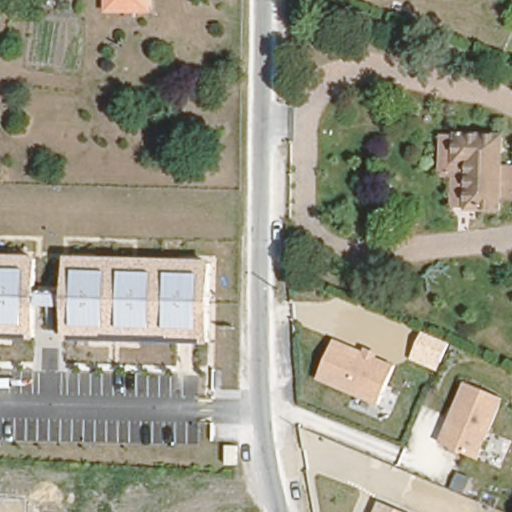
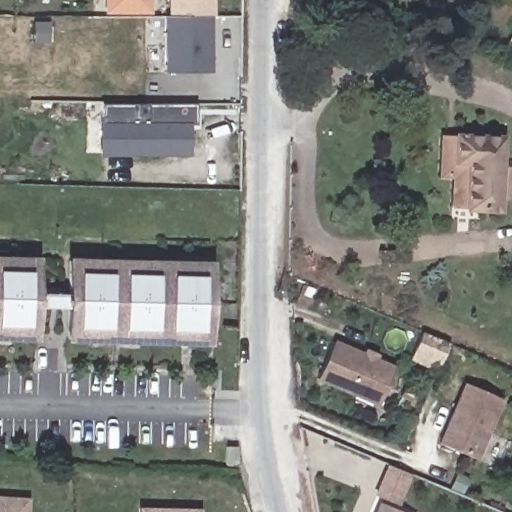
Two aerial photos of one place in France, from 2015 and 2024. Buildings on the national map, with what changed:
unchanged [(105,15),(105,0),(147,0),(148,15),(105,15)]
new [(210,15),(167,15),(167,0),(214,0),(214,15),(210,15)]
new [(163,15),(210,15),(209,72),(162,72),(163,15)]
new [(173,156),(106,156),(106,107),(200,107),(201,128),(191,128),(191,156),(173,156)]
unchanged [(497,211),(496,221),(462,220),(463,176),(448,175),(450,142),(501,145),(499,173),(512,174),(512,211),(497,211)]
unchanged [(0,338),(0,256),(41,257),(38,338),(0,338)]
unchanged [(213,344),(68,341),(67,256),(215,258),(213,344)]
new [(419,331),(446,342),(438,362),(411,350),(419,331)]
unchanged [(378,407),(318,380),(335,340),(395,366),(378,407)]
unchanged [(480,462),(440,447),(466,384),(505,398),(480,462)]
unchanged [(372,492),(386,465),(411,477),(399,507),(409,512),(370,512),(375,501),(372,492)]
new [(0,496),(28,497),(27,512),(0,512),(0,496)]
new [(138,507),(201,508),(201,512),(138,512),(138,507)]

